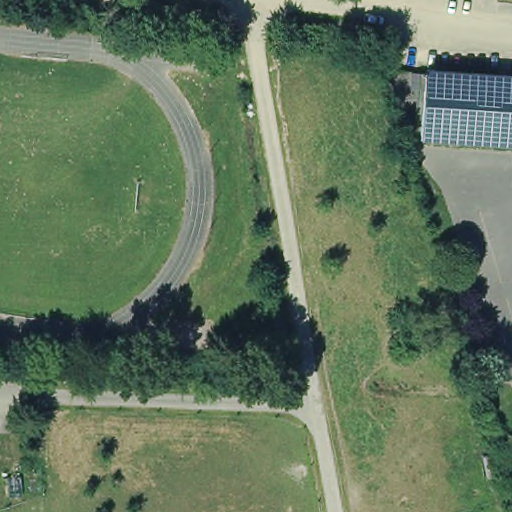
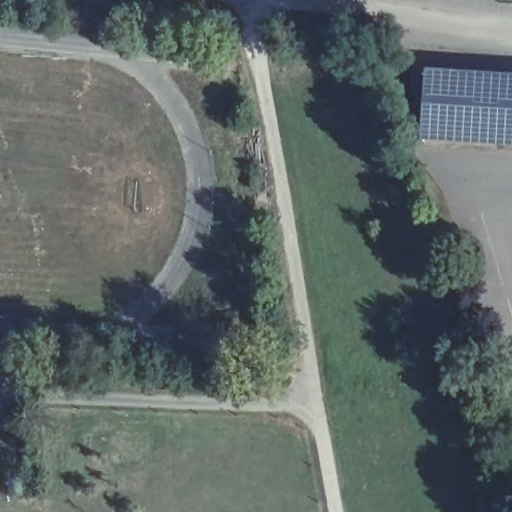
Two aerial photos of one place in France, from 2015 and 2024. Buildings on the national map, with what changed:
unchanged [(424,92),(411,91),(412,71),(425,72),(512,79),(512,143),(421,135),(424,92)]

